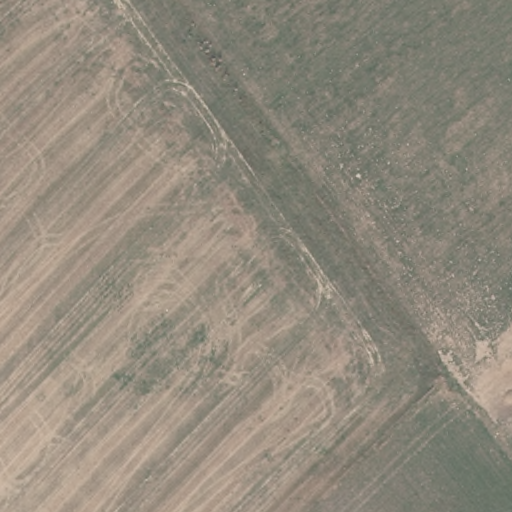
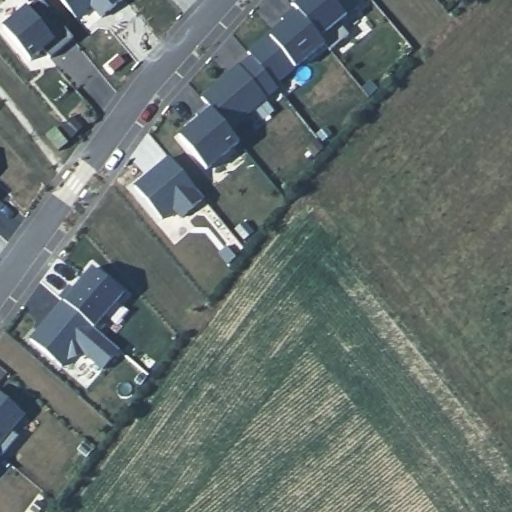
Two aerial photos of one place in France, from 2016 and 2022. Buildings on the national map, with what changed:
new [(102,23),(93,11),(77,24),(58,0),(123,0),(126,4),(102,23)]
new [(340,29),(350,41),(332,56),(326,50),(296,14),(292,9),(304,0),(349,0),(360,12),(340,29)]
new [(41,4),(75,45),(51,64),(45,55),(32,66),(5,34),(41,4)]
new [(262,46),(265,49),(287,30),(283,24),(296,14),(326,50),(276,90),(253,62),(249,57),(262,46)]
new [(241,71),(241,72),(253,62),(276,90),(279,94),(267,104),(268,105),(230,135),(209,110),(202,102),(241,71)]
new [(201,125),(197,120),(209,110),(230,135),(241,149),(207,175),(181,142),(201,125)]
new [(171,160),(205,200),(182,219),(174,210),(162,220),(136,187),(171,160)]
new [(71,287),(75,291),(94,270),(124,295),(105,317),(110,321),(99,333),(64,303),(60,299),(71,287)]
new [(64,303),(99,333),(121,351),(103,371),(86,355),(68,360),(62,367),(31,340),(64,303)]
new [(11,431),(19,438),(3,457),(1,456),(0,455),(0,388),(28,411),(11,431)]
new [(0,457),(0,455),(1,456),(0,457)]

